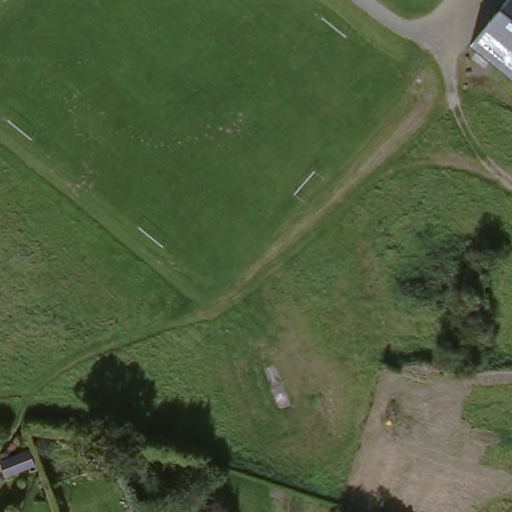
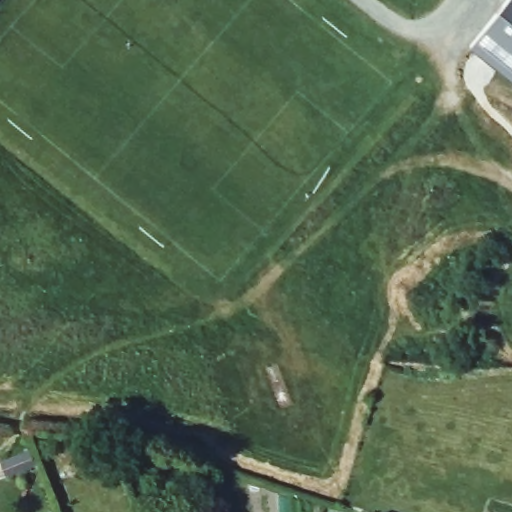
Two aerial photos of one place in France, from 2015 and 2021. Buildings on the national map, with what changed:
unchanged [(505,0),(512,0),(512,76),(471,41),(505,0)]
unchanged [(29,452),(34,467),(8,475),(3,460),(29,452)]

